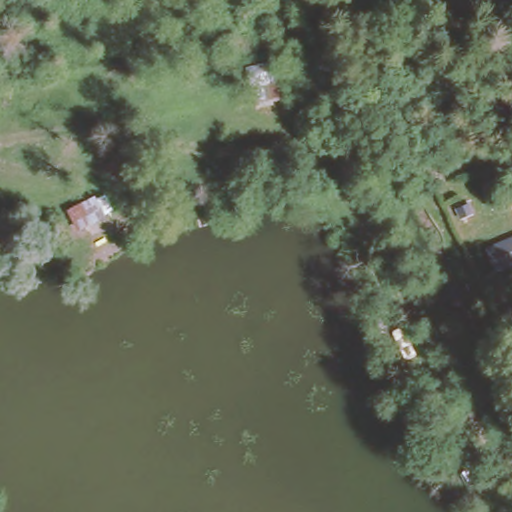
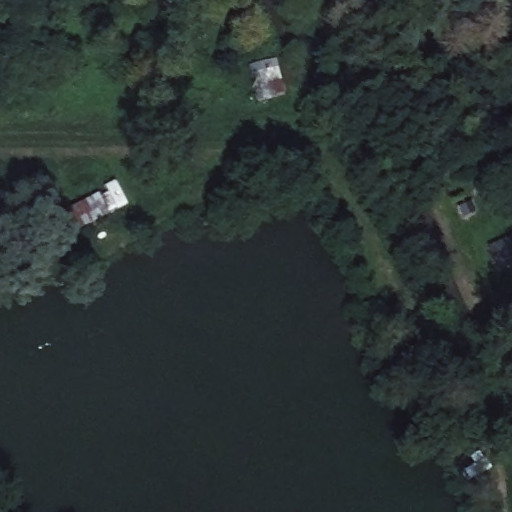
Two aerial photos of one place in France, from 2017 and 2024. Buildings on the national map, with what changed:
unchanged [(317,164),(293,154),(298,140),(322,150),(317,164)]
unchanged [(275,203),(267,188),(283,179),(290,193),(275,203)]

